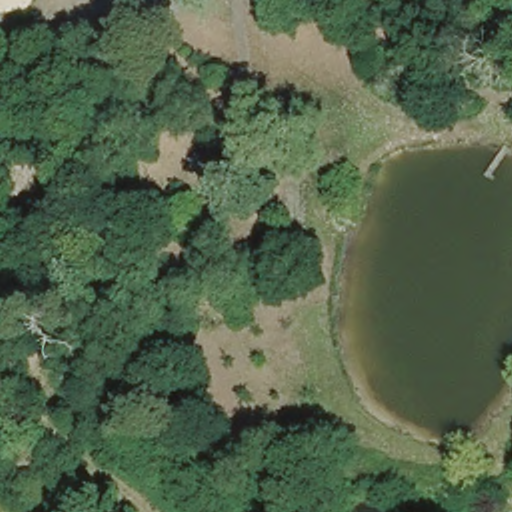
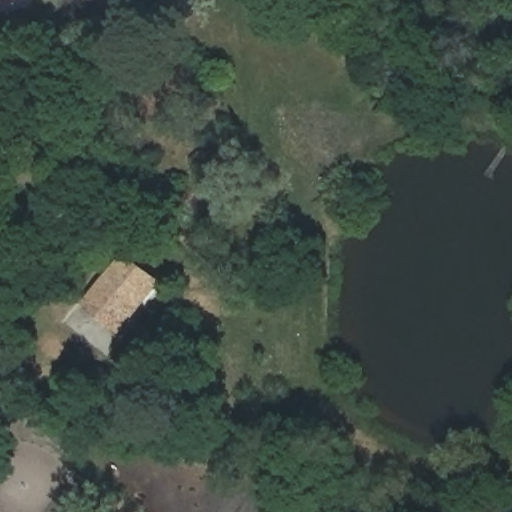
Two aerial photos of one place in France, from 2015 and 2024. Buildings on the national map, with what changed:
unchanged [(200,150),(224,154),(229,163),(207,180),(190,160),(200,150)]
new [(122,335),(85,305),(124,253),(164,283),(122,335)]

